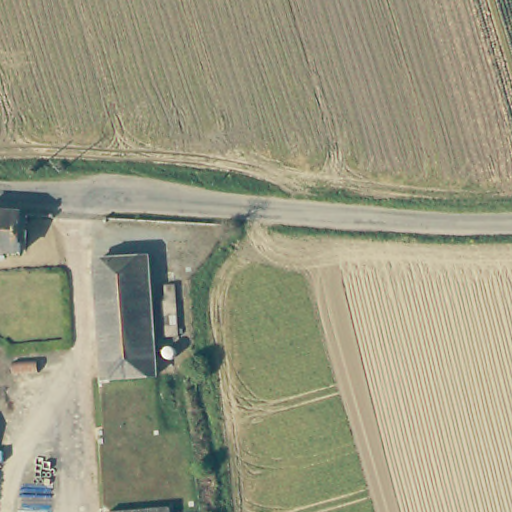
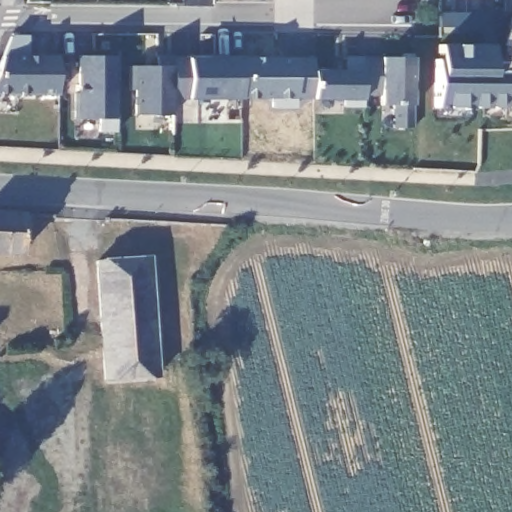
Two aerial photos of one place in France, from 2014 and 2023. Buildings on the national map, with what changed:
new [(502,54),(512,31),(512,58),(502,54)]
new [(24,38),(24,57),(54,57),(54,94),(0,94),(0,54),(6,38),(24,38)]
new [(436,107),(435,60),(439,60),(441,46),(494,47),(494,61),(502,62),(502,70),(512,71),(512,107),(466,107),(464,119),(435,118),(436,107)]
new [(241,98),(173,98),(173,115),(135,114),(136,65),(166,65),(163,54),(173,55),(174,57),(189,56),(242,56),(241,98)]
new [(71,95),(75,95),(75,57),(112,57),(111,133),(94,133),(95,120),(70,120),(71,95)]
new [(413,105),(414,129),(395,129),(401,104),(380,103),(380,99),(363,100),(363,108),(343,108),(347,100),(314,100),(314,69),(350,69),(347,57),(412,57),(413,105)]
unchanged [(24,254),(0,253),(0,213),(26,214),(24,254)]
unchanged [(145,258),(155,375),(101,378),(95,262),(145,258)]
unchanged [(158,302),(165,301),(163,286),(173,285),(176,337),(162,337),(158,302)]
unchanged [(17,365),(41,362),(41,373),(18,375),(17,365)]
unchanged [(169,512),(121,512),(169,509),(169,512)]

